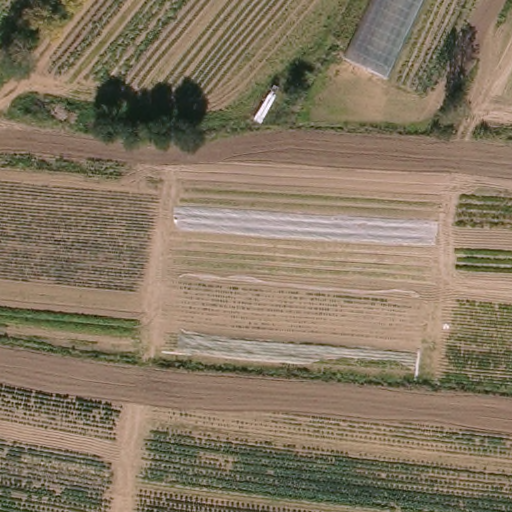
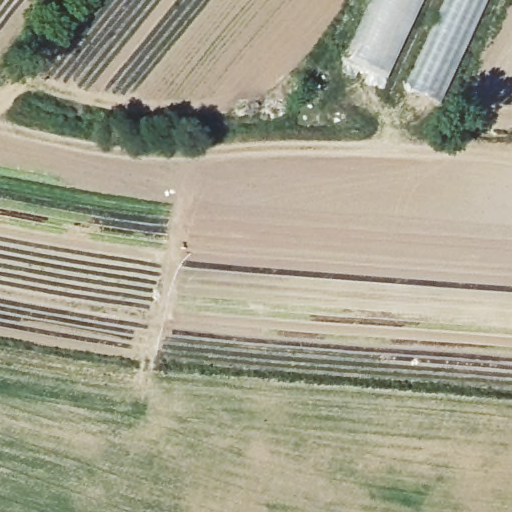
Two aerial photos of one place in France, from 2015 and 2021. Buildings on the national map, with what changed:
unchanged [(387,78),(343,58),(370,0),(423,0),(387,78)]
new [(410,86),(448,0),(484,0),(438,100),(410,86)]

